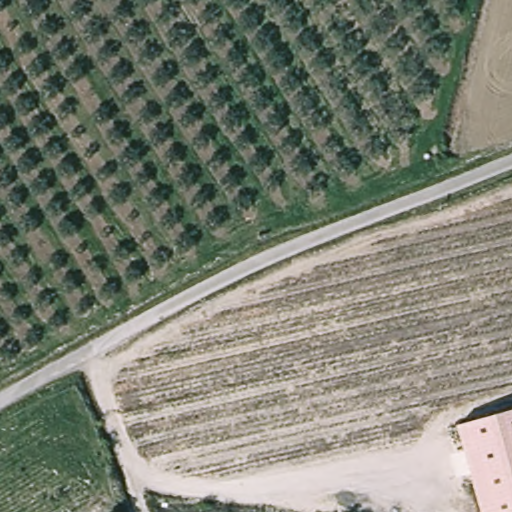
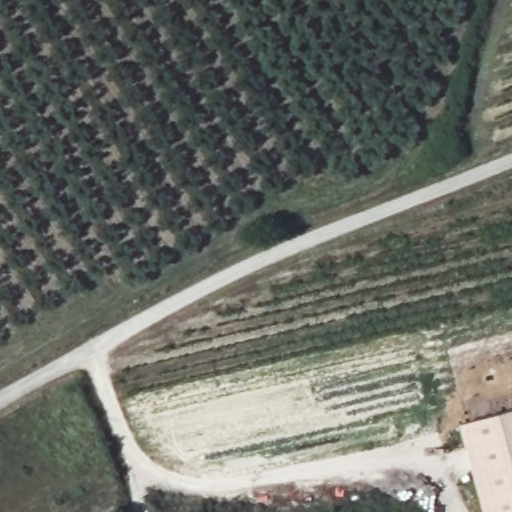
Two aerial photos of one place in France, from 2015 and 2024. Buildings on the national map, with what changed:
unchanged [(512,410),(512,512),(479,512),(456,427),(512,410)]

